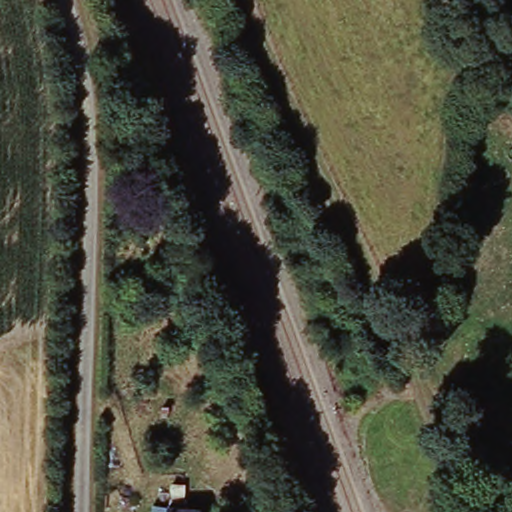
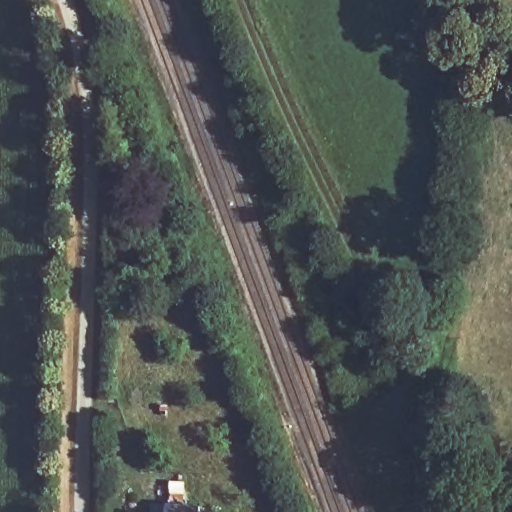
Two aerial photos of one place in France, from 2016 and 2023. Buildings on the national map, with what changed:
unchanged [(369,388),(390,380),(393,390),(373,397),(369,388)]
unchanged [(195,490),(194,512),(167,512),(168,488),(195,490)]

